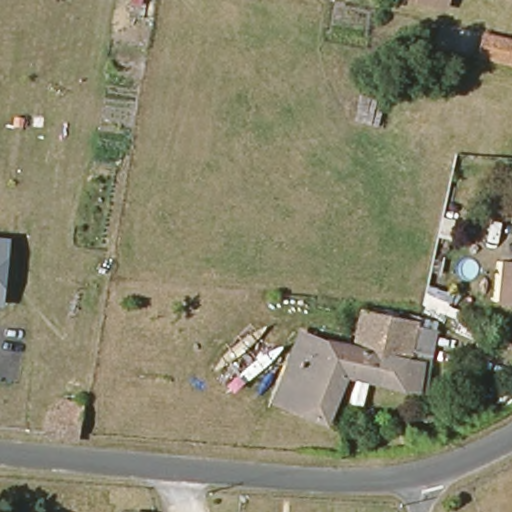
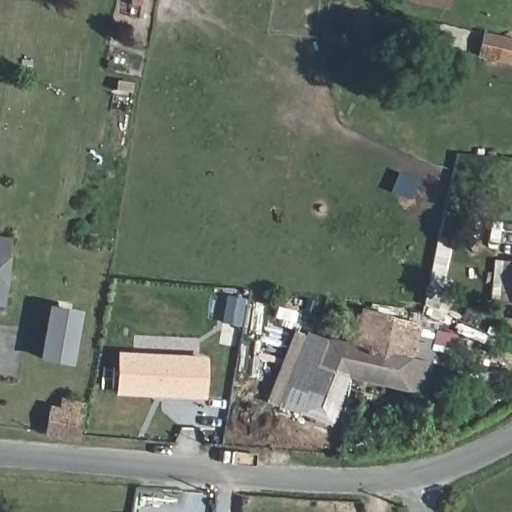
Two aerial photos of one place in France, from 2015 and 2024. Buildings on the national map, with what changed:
unchanged [(441,4),(425,0),(442,0),(441,4)]
unchanged [(512,65),(475,57),(480,32),(512,40),(512,65)]
demolished [(390,99),(386,132),(353,127),(354,121),(343,120),(348,93),(390,99)]
unchanged [(10,237),(1,307),(0,307),(0,236),(10,237)]
unchanged [(512,265),(512,305),(500,303),(503,277),(504,265),(512,265)]
new [(70,367),(38,361),(47,306),(80,312),(70,367)]
unchanged [(345,377),(324,422),(273,402),(300,337),(352,347),(360,316),(414,327),(434,332),(426,366),(418,364),(412,390),(345,377)]
new [(198,388),(197,401),(114,396),(116,352),(206,357),(205,388),(198,388)]
unchanged [(51,412),(81,416),(77,437),(48,434),(51,412)]

